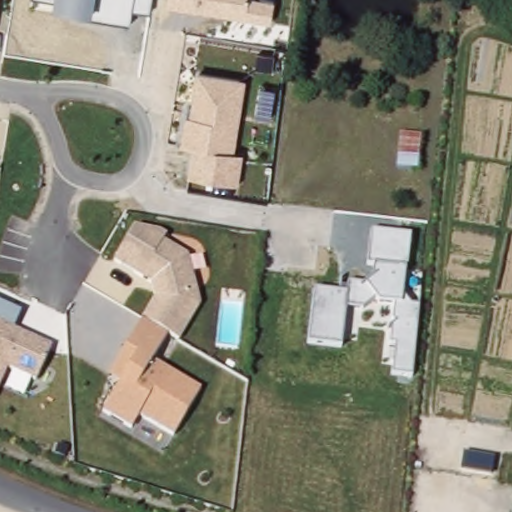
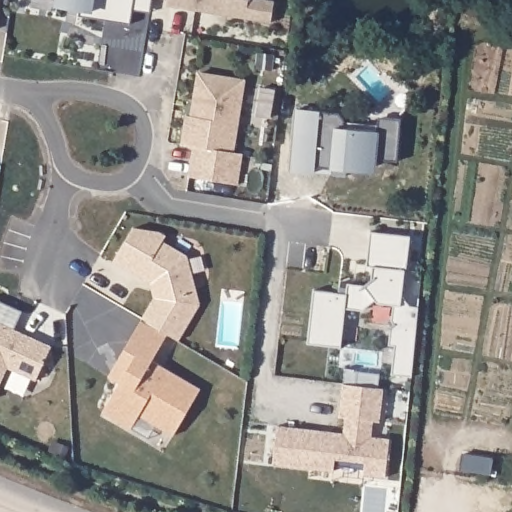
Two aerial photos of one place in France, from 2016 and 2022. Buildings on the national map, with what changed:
unchanged [(55,0),(152,0),(150,11),(133,9),(130,24),(93,15),(54,7),(55,0)]
unchanged [(167,6),(168,0),(257,0),(275,4),(273,22),(167,6)]
unchanged [(188,177),(193,145),(180,143),(186,113),(191,114),(199,67),(245,79),(235,150),(244,154),(241,185),(188,177)]
new [(401,120),(397,161),(377,160),(376,173),(330,169),(315,167),(314,174),(290,171),(294,109),(401,120)]
demolished [(414,175),(392,172),(396,136),(419,136),(414,175)]
unchanged [(168,231),(164,240),(188,253),(199,306),(175,340),(140,320),(154,300),(149,285),(113,265),(134,226),(168,231)]
unchanged [(307,345),(314,290),(338,292),(338,286),(347,287),(347,284),(364,285),(371,280),(372,268),(367,267),(370,232),(410,236),(407,270),(403,296),(409,306),(419,306),(412,376),(392,374),(395,345),(390,343),(394,305),(378,302),(374,297),(362,309),(345,307),(342,347),(307,345)]
unchanged [(173,435),(139,416),(133,427),(103,411),(118,381),(105,375),(140,320),(168,336),(151,361),(203,388),(173,435)]
unchanged [(7,366),(0,381),(0,322),(51,345),(38,380),(7,366)]
new [(364,475),(366,460),(337,457),(334,471),(274,464),(278,425),(344,431),(346,415),(339,415),(343,383),(384,388),(379,418),(374,418),(372,435),(391,438),(387,476),(364,475)]

